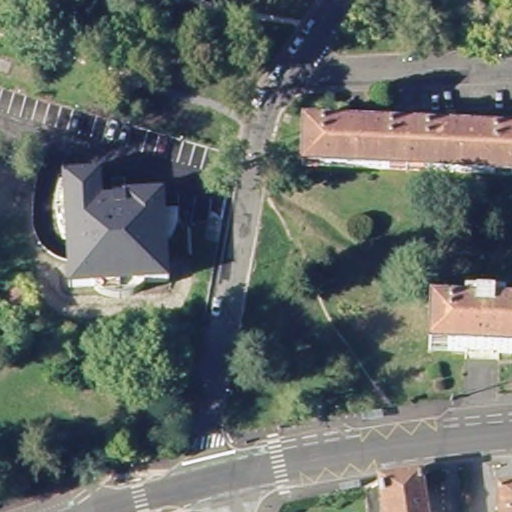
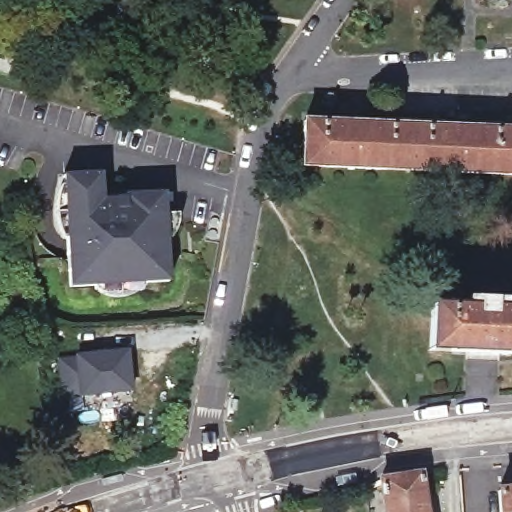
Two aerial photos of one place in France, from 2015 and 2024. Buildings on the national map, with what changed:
unchanged [(512,0),(512,1),(484,0),(512,0)]
unchanged [(512,176),(301,166),(303,121),(512,131),(512,176)]
unchanged [(101,172),(102,200),(124,198),(124,194),(163,192),(170,282),(69,288),(63,175),(101,172)]
unchanged [(464,307),(464,299),(505,300),(504,308),(512,309),(512,353),(428,350),(431,306),(464,307)]
new [(77,355),(77,353),(128,348),(132,387),(81,392),(80,389),(63,391),(60,357),(77,355)]
unchanged [(425,512),(385,512),(381,479),(420,474),(425,512)]
unchanged [(512,492),(512,512),(500,512),(499,493),(512,492)]

